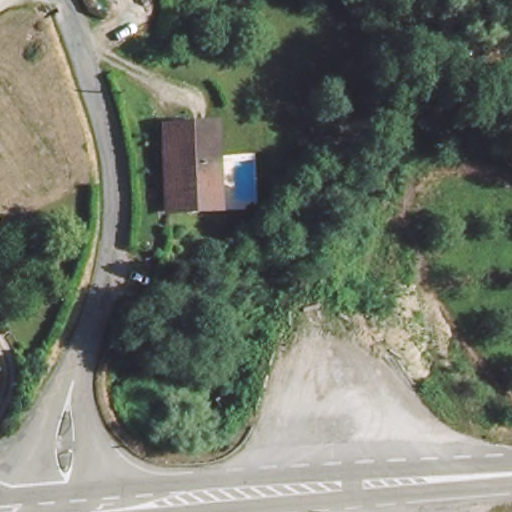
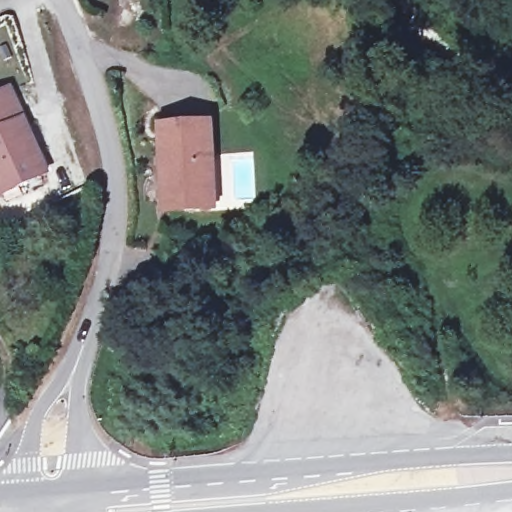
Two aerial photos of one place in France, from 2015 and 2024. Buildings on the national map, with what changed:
new [(50,166),(5,187),(0,189),(0,89),(12,84),(50,166)]
unchanged [(224,121),(224,161),(219,161),(218,205),(174,205),(175,121),(224,121)]

